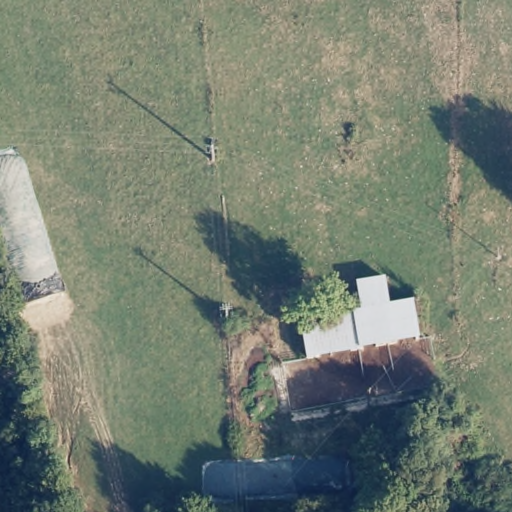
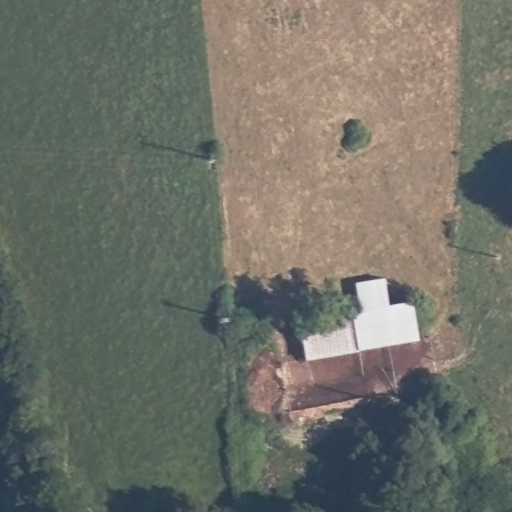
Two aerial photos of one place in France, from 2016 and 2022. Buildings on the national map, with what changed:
unchanged [(307,356),(301,319),(360,307),(356,278),(389,273),(393,299),(416,297),(425,337),(307,356)]

